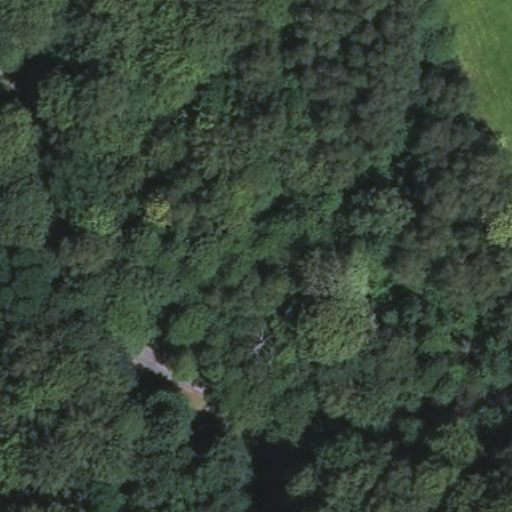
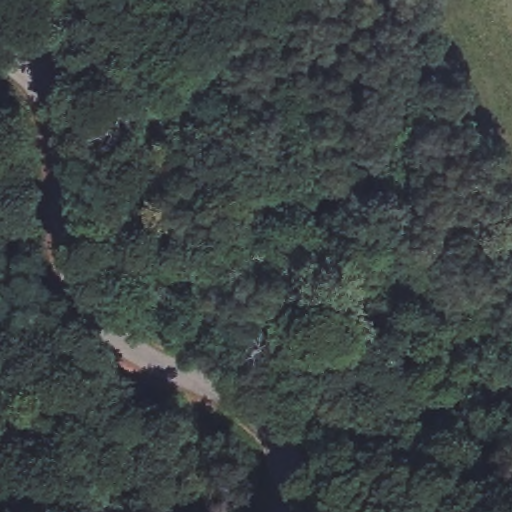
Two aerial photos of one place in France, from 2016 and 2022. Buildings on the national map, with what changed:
[]

